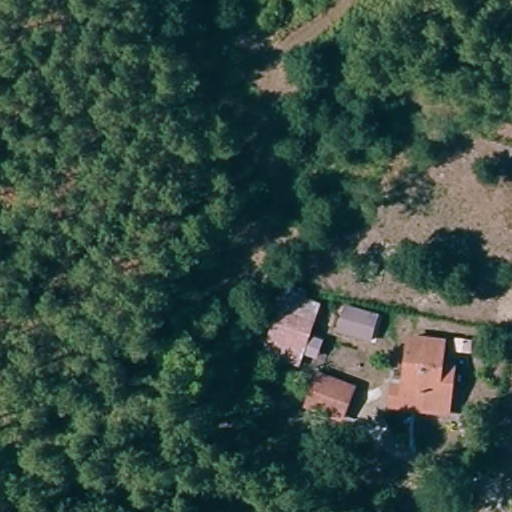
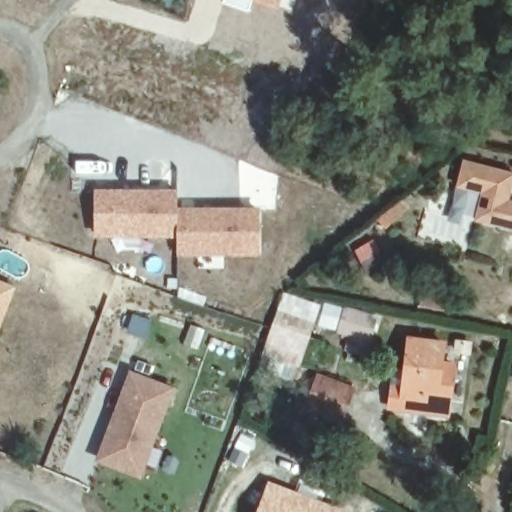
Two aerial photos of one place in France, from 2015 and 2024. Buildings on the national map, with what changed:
new [(222,0),(251,0),(248,11),(222,2),(222,0)]
new [(291,11),(252,0),(295,0),(291,11)]
new [(512,175),(512,192),(509,202),(512,203),(512,231),(478,221),(485,194),(460,187),(467,162),(512,175)]
new [(177,189),(178,207),(260,206),(261,253),(178,255),(177,237),(96,237),(95,188),(177,189)]
demolished [(368,229),(393,237),(389,251),(415,262),(407,284),(354,265),(368,229)]
new [(16,286),(0,327),(0,280),(16,286)]
unchanged [(275,290),(316,303),(293,364),(256,352),(275,290)]
new [(319,294),(378,313),(370,341),(314,326),(310,337),(324,341),(318,360),(304,356),(301,367),(293,364),(316,303),(319,294)]
unchanged [(390,372),(402,372),(406,337),(451,340),(449,364),(461,365),(456,419),(389,413),(390,372)]
new [(175,387),(141,478),(95,462),(130,370),(175,387)]
unchanged [(303,413),(320,372),(357,387),(340,429),(303,413)]
new [(319,504),(317,508),(325,510),(326,506),(340,511),(339,512),(260,512),(268,487),(319,504)]

